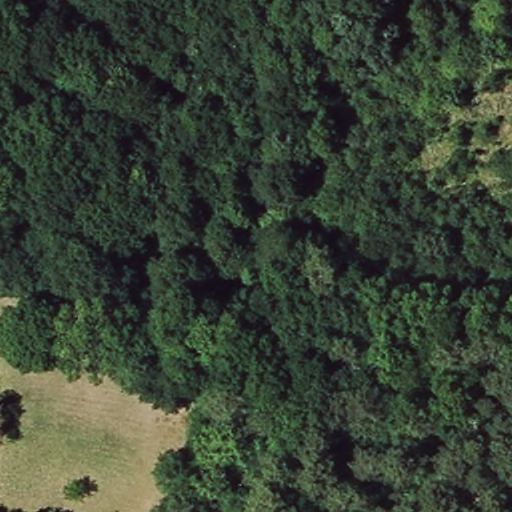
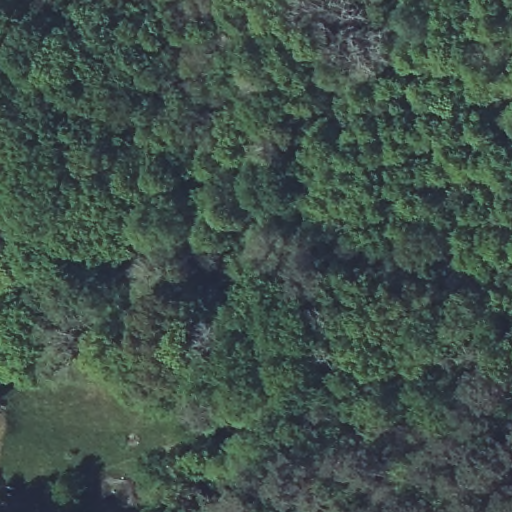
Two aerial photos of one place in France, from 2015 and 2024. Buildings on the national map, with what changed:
[]

